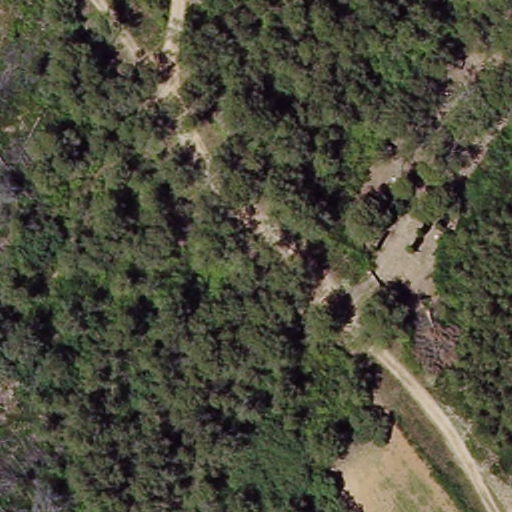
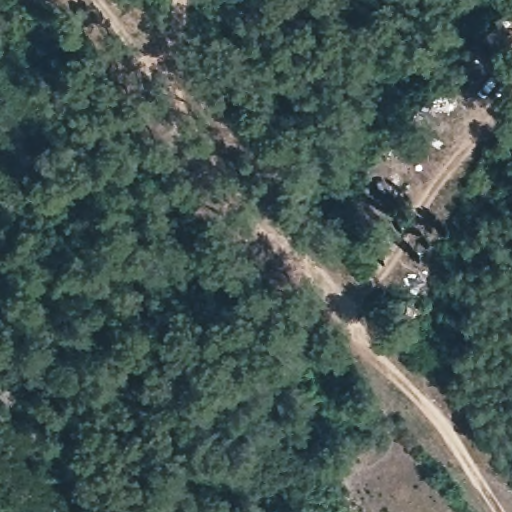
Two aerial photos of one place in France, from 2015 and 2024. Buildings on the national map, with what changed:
unchanged [(479,245),(447,232),(484,182),(510,198),(479,245)]

